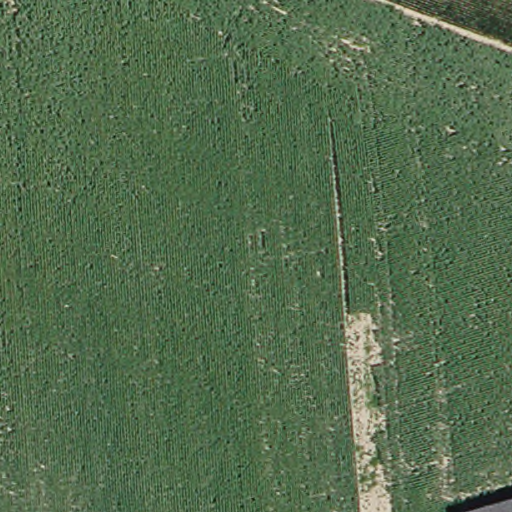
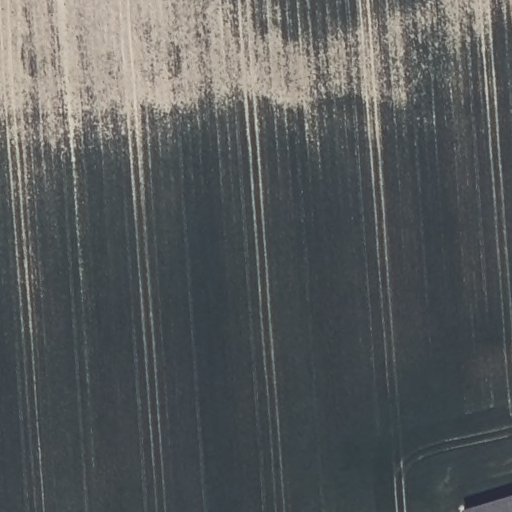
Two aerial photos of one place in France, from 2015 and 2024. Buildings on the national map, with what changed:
unchanged [(463,512),(512,498),(512,512),(463,512)]

